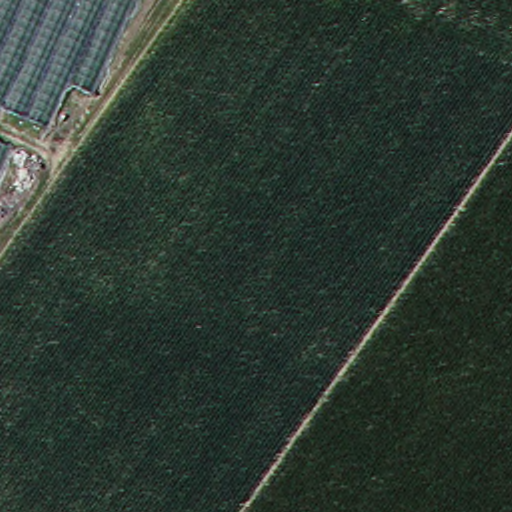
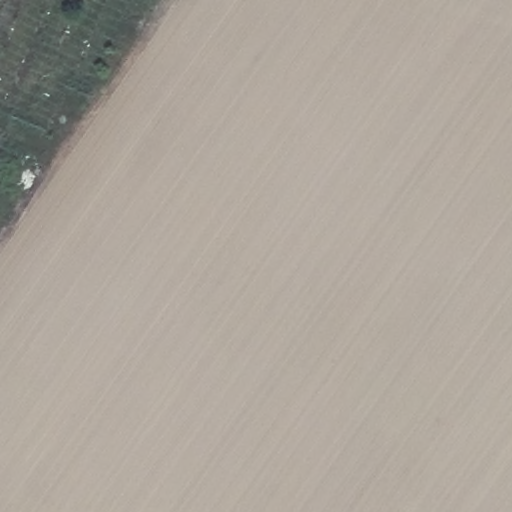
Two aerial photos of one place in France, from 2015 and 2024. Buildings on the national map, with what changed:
demolished [(140,0),(96,95),(73,84),(52,126),(0,104),(0,0),(140,0)]
demolished [(18,145),(0,185),(0,138),(18,145)]

